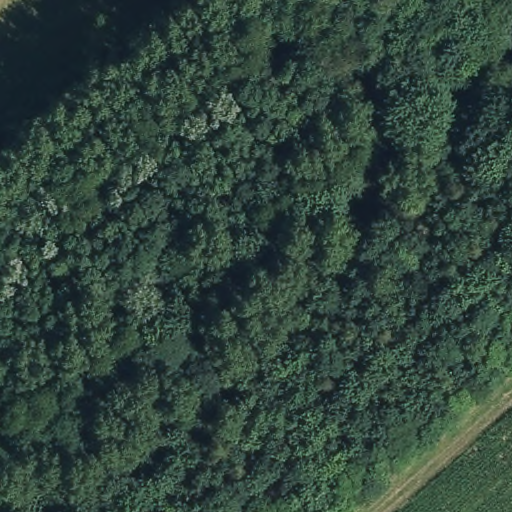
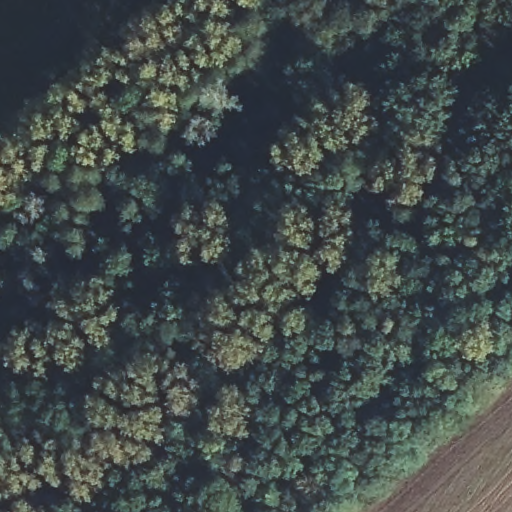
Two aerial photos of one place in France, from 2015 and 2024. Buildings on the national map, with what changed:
unchanged [(251,0),(242,11),(227,0),(251,0)]

